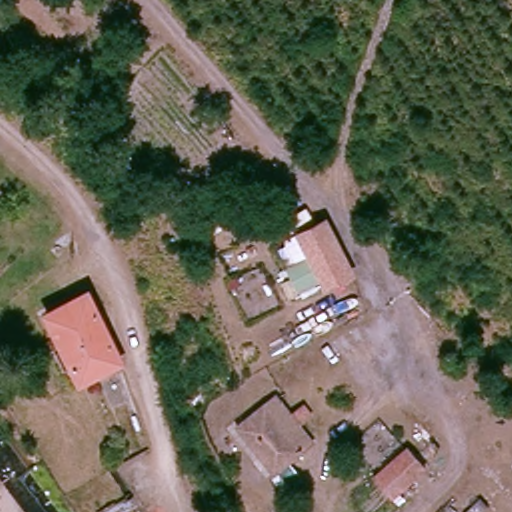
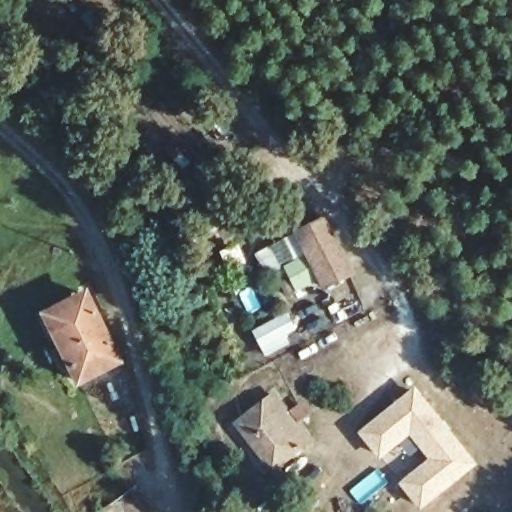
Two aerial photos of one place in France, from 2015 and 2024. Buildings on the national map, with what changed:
unchanged [(331,287),(327,278),(303,289),(292,267),(315,254),(304,232),(332,219),(359,273),(331,287)]
unchanged [(85,378),(50,315),(90,290),(104,314),(127,358),(85,378)]
new [(398,485),(427,460),(409,437),(379,460),(358,434),(414,388),(476,464),(420,511),(398,485)]
unchanged [(271,462),(241,428),(279,401),(308,434),(271,462)]
demolished [(391,509),(375,489),(415,459),(431,478),(391,509)]

